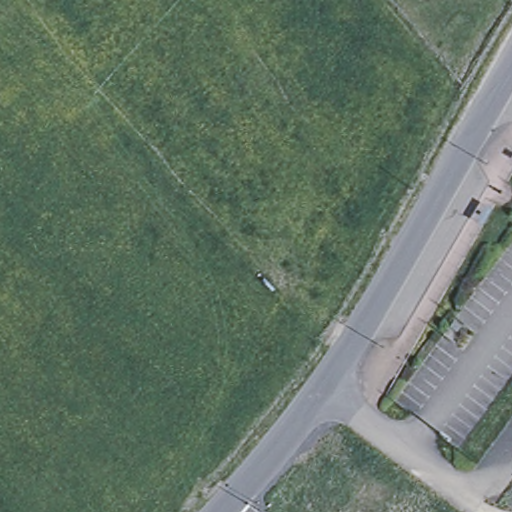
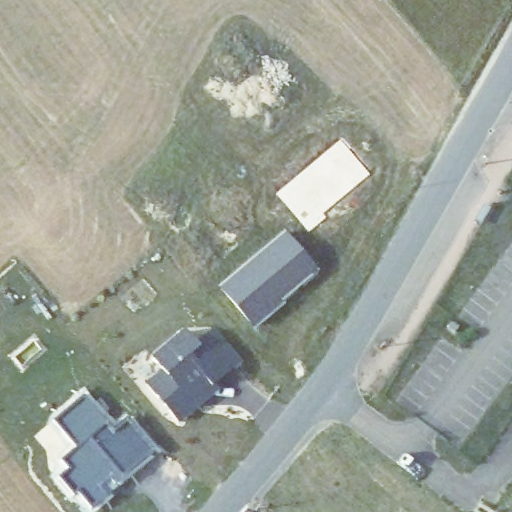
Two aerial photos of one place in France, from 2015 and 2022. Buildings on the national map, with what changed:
new [(241,362),(214,383),(219,389),(178,423),(144,383),(161,371),(150,357),(184,327),(197,342),(213,329),(241,362)]
new [(153,450),(114,485),(117,487),(90,508),(76,491),(72,495),(58,476),(68,469),(61,460),(75,448),(53,421),(83,397),(113,432),(127,420),(153,450)]

